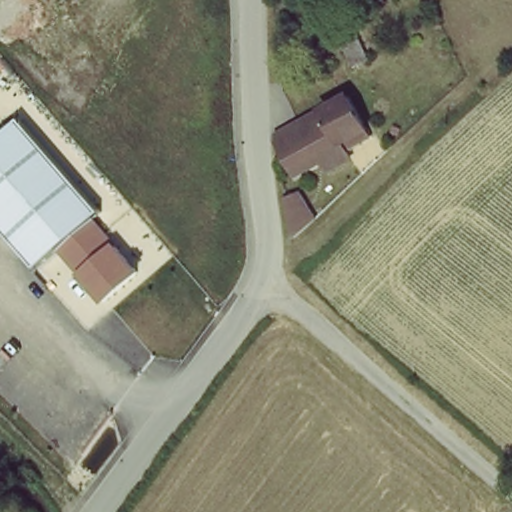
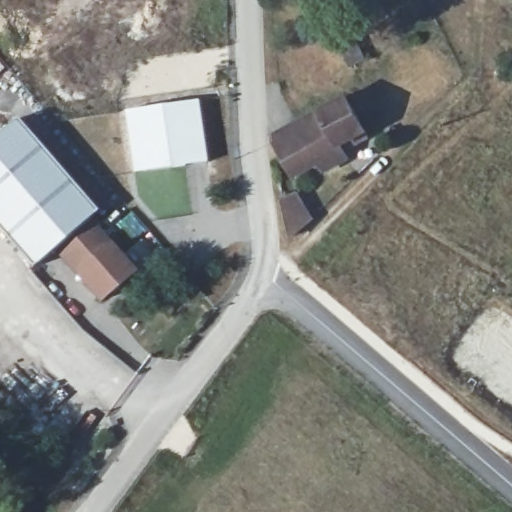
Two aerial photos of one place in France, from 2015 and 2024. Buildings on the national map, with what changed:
unchanged [(356,28),(369,57),(354,64),(341,36),(356,28)]
unchanged [(293,158),(277,132),(347,90),(367,126),(344,139),(350,149),(329,161),(324,152),(299,167),(293,158)]
new [(124,111),(199,101),(207,163),(134,175),(124,111)]
unchanged [(0,134),(17,119),(98,213),(91,217),(77,231),(56,249),(36,267),(0,229),(0,134)]
unchanged [(290,233),(287,205),(303,200),(307,205),(315,216),(292,238),(290,233)]
unchanged [(56,249),(77,231),(91,217),(141,272),(102,304),(56,249)]

